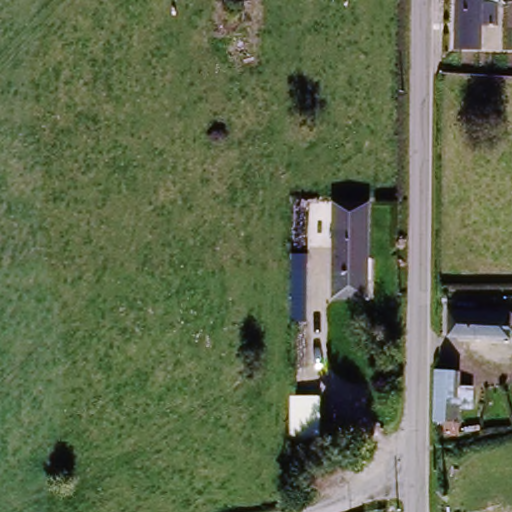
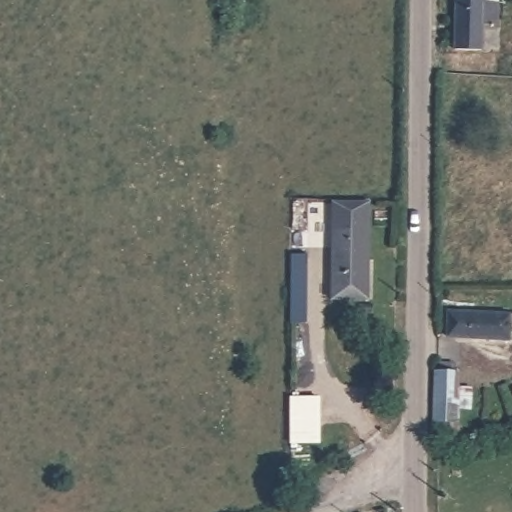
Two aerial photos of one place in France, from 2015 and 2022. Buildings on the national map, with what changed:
unchanged [(499,6),(498,28),(483,28),(483,52),(458,52),(458,0),(483,0),(483,5),(499,6)]
unchanged [(326,201),(362,202),(360,296),(325,295),(326,201)]
unchanged [(285,256),(302,256),(300,306),(300,324),(295,324),(283,324),(284,306),(285,256)]
unchanged [(450,309),(512,314),(512,325),(510,324),(509,337),(447,332),(450,309)]
unchanged [(444,424),(437,423),(440,372),(462,373),(460,424),(459,437),(443,436),(444,424)]
unchanged [(512,394),(510,391),(512,390),(512,394)]
unchanged [(297,398),(323,399),(322,444),(296,444),(297,398)]

